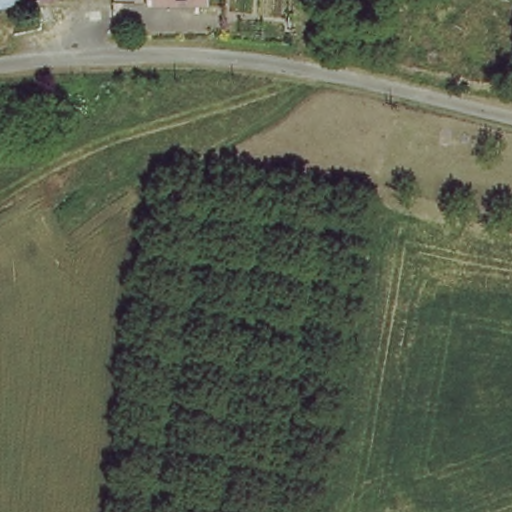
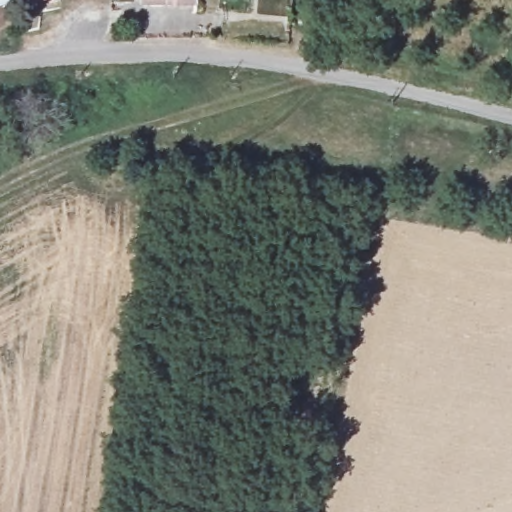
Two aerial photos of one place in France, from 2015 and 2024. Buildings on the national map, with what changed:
unchanged [(11,0),(0,4),(0,0),(13,0),(11,0)]

